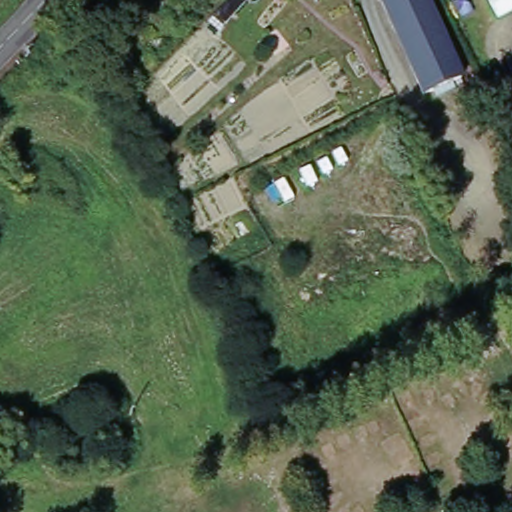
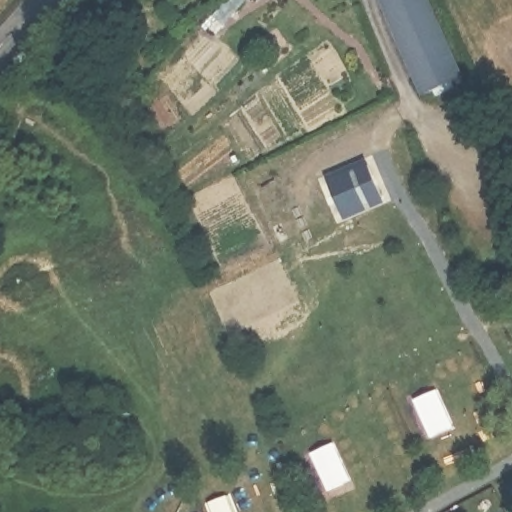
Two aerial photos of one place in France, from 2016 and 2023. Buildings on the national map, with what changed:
unchanged [(466,81),(428,98),(385,0),(431,0),(466,81)]
new [(365,158),(383,203),(343,219),(325,175),(365,158)]

